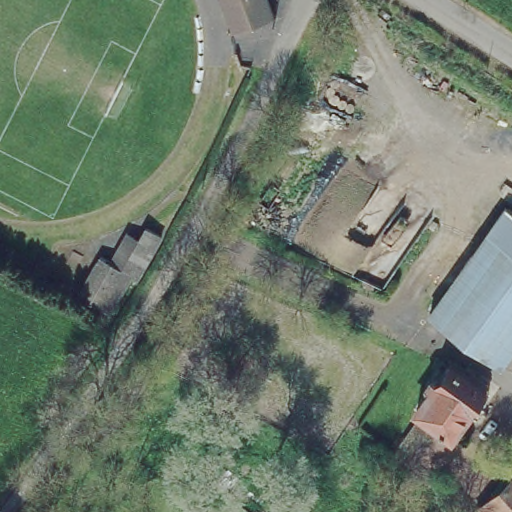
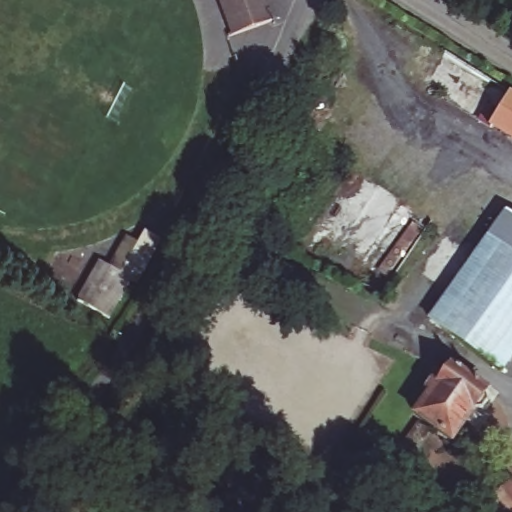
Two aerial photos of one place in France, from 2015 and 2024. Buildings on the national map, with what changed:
unchanged [(265,0),(272,18),(230,34),(218,0),(265,0)]
new [(482,121),(488,111),(498,117),(512,96),(512,140),(482,121)]
unchanged [(512,214),(512,360),(503,372),(427,318),(505,210),(512,214)]
unchanged [(103,262),(125,275),(151,234),(167,244),(139,286),(133,282),(108,319),(77,300),(103,262)]
unchanged [(490,393),(492,402),(485,410),(477,410),(453,443),(425,422),(420,418),(432,400),(430,397),(429,393),(440,377),(447,381),(455,367),(490,393)]
unchanged [(430,436),(404,473),(403,473),(394,466),(420,430),(430,436)]
unchanged [(512,489),(512,512),(487,512),(512,489)]

